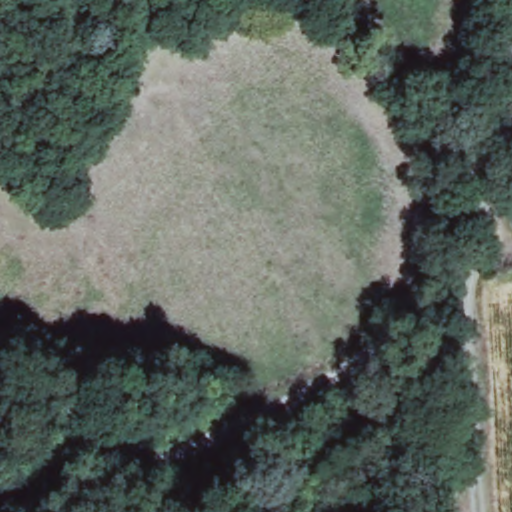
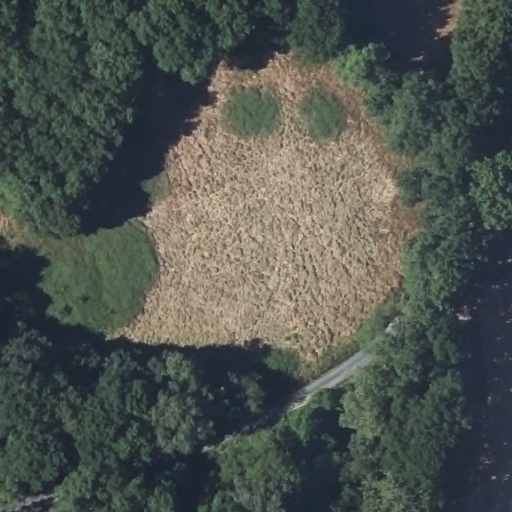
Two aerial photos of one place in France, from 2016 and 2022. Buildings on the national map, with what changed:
[]

